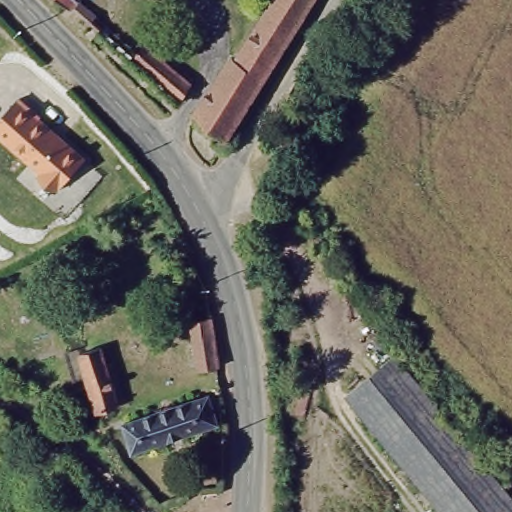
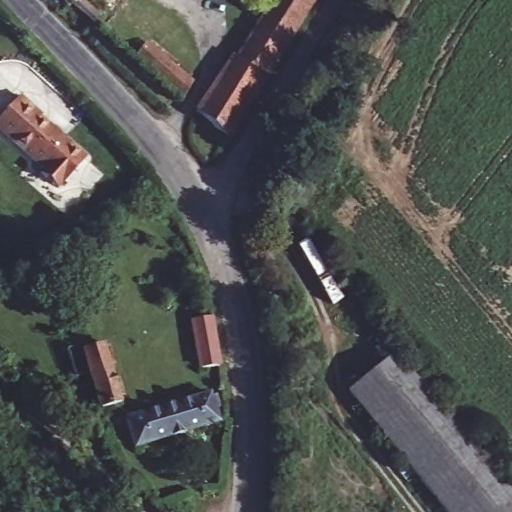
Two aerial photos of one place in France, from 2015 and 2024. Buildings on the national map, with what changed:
unchanged [(95,5),(86,17),(68,0),(90,0),(95,5)]
unchanged [(291,36),(267,16),(278,0),(314,0),(291,36)]
unchanged [(225,141),(192,112),(227,59),(236,60),(267,16),(291,36),(225,141)]
unchanged [(131,57),(145,41),(192,80),(178,99),(131,57)]
unchanged [(46,136),(95,179),(65,212),(47,196),(50,192),(0,144),(0,142),(25,114),(48,135),(46,136)]
unchanged [(212,339),(215,360),(195,364),(188,315),(207,310),(212,339)]
unchanged [(86,403),(73,357),(86,353),(90,352),(90,353),(116,347),(124,370),(127,397),(104,402),(103,399),(93,401),(86,403)]
unchanged [(391,347),(512,494),(512,512),(447,512),(343,387),(391,347)]
unchanged [(209,396),(217,426),(130,444),(122,413),(209,396)]

